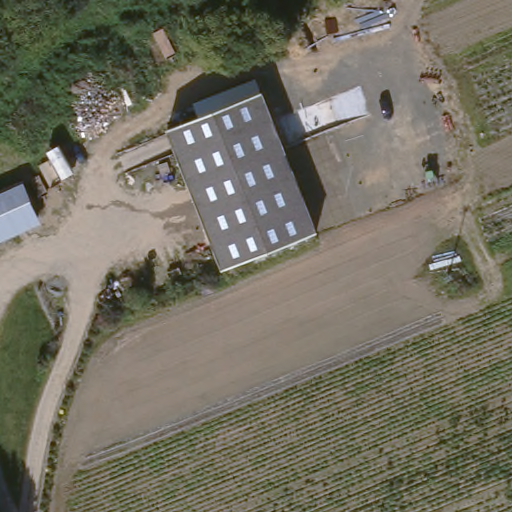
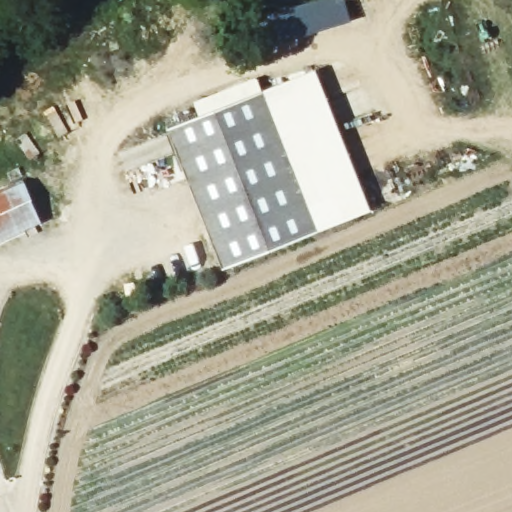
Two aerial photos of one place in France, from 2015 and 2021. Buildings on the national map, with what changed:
new [(257,90),(199,113),(194,103),(257,77),(263,89),(316,69),(368,204),(314,225),(257,90)]
unchanged [(257,90),(314,225),(228,261),(169,124),(257,90)]
unchanged [(40,218),(0,237),(0,195),(21,185),(40,218)]

